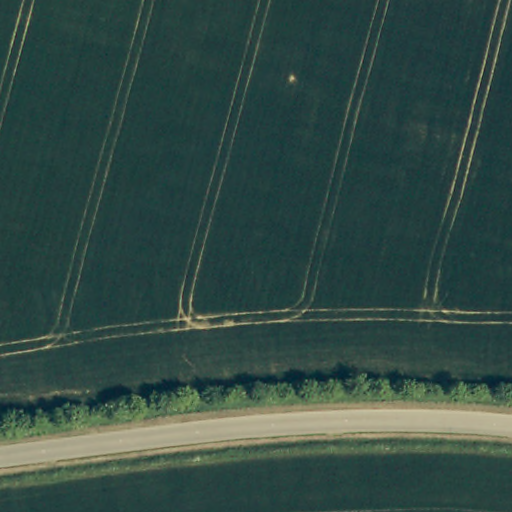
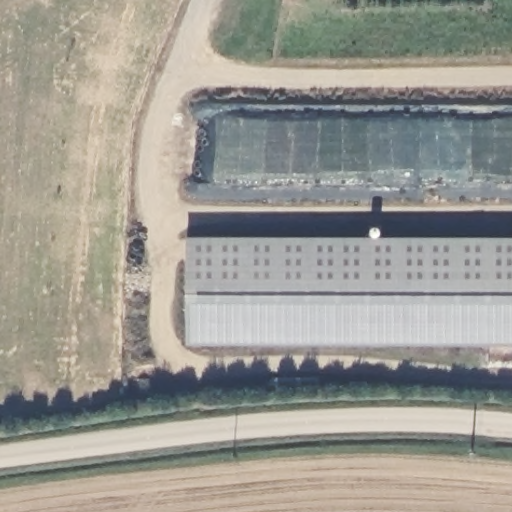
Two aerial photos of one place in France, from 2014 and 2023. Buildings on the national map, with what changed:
new [(185,237),(512,237),(512,345),(188,345),(185,237)]

